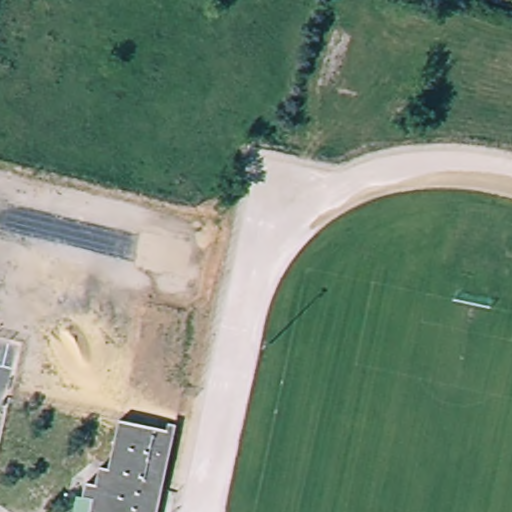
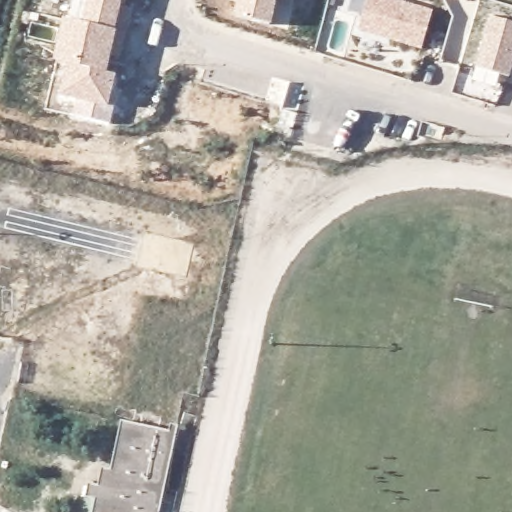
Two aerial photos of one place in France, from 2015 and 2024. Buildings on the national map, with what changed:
new [(117,31),(107,74),(116,75),(109,105),(114,107),(110,125),(74,117),(78,101),(60,97),(67,66),(53,63),(62,20),(80,22),(86,0),(122,0),(115,30),(117,31)]
new [(235,17),(238,5),(220,0),(277,0),(271,25),(235,17)]
new [(423,51),(358,32),(367,0),(386,0),(434,14),(423,51)]
new [(512,67),(509,77),(475,68),(488,17),(512,24),(512,67)]
unchanged [(162,512),(99,512),(100,502),(90,500),(94,485),(104,486),(108,470),(117,471),(127,423),(179,434),(162,512)]

